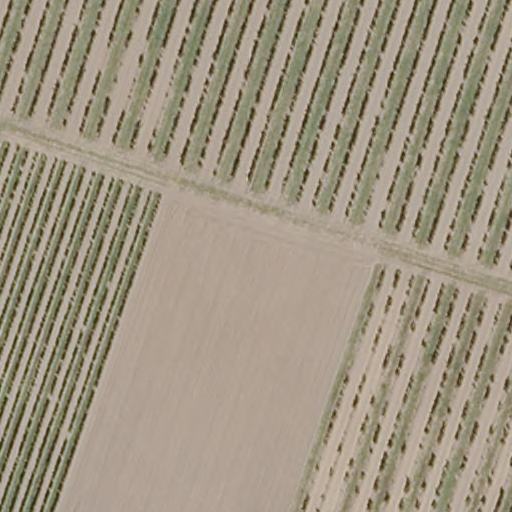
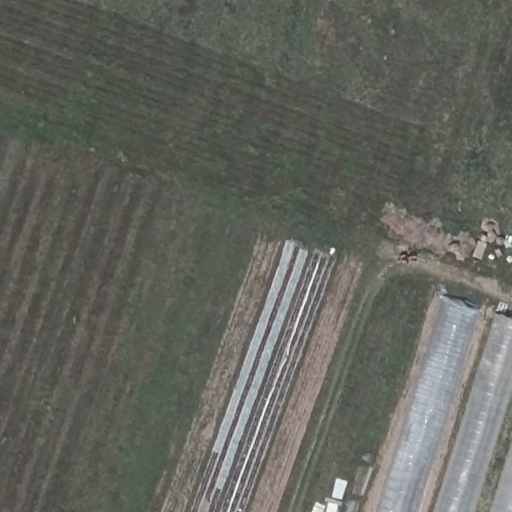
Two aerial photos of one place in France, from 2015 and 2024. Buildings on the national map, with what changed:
new [(512,319),(512,512),(374,512),(439,297),(512,319)]
demolished [(331,512),(325,512),(326,510),(331,512)]

